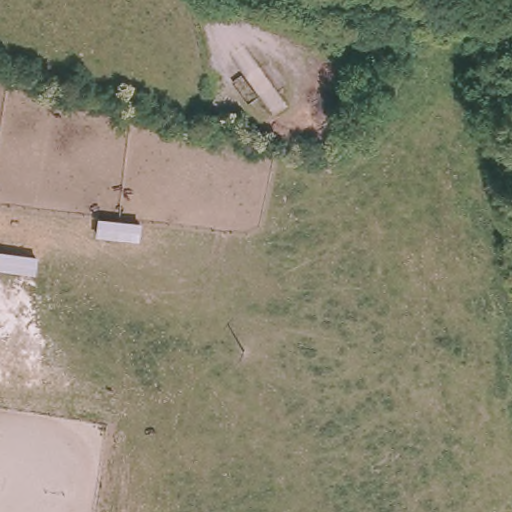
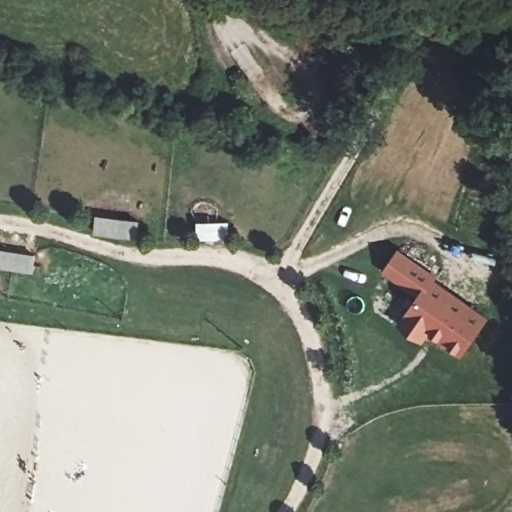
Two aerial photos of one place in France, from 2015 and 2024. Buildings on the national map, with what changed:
new [(97,217),(137,221),(135,237),(95,233),(97,217)]
new [(439,274),(435,279),(488,318),(462,358),(429,334),(422,343),(396,324),(417,294),(383,271),(400,248),(439,274)]
new [(32,271),(0,267),(0,250),(33,255),(32,271)]

